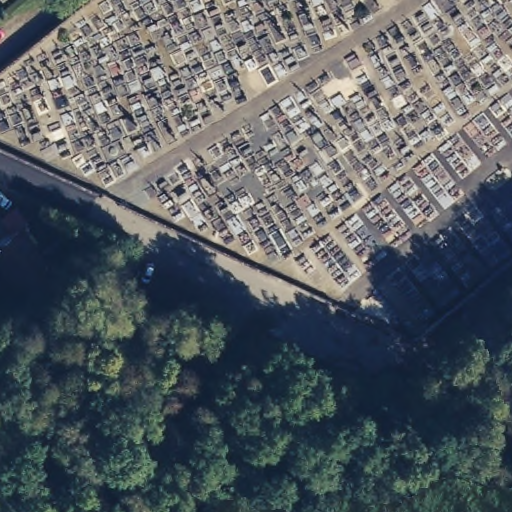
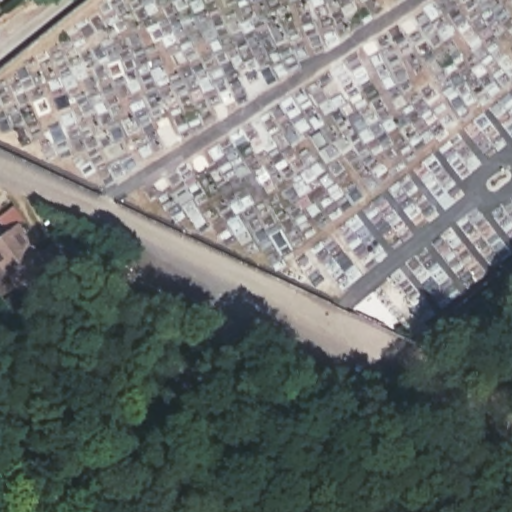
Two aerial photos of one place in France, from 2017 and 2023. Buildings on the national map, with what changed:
unchanged [(20,205),(57,256),(14,287),(0,267),(0,219),(20,205)]

